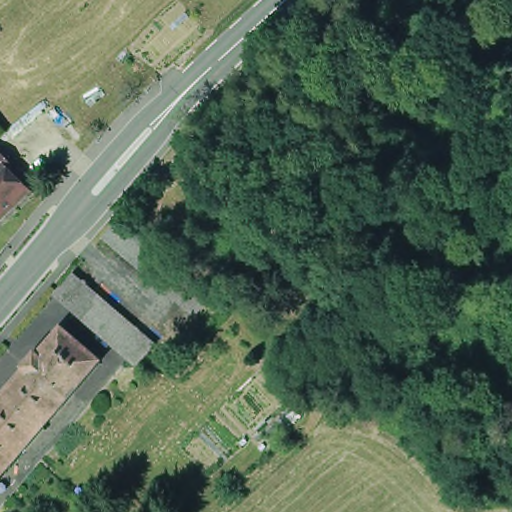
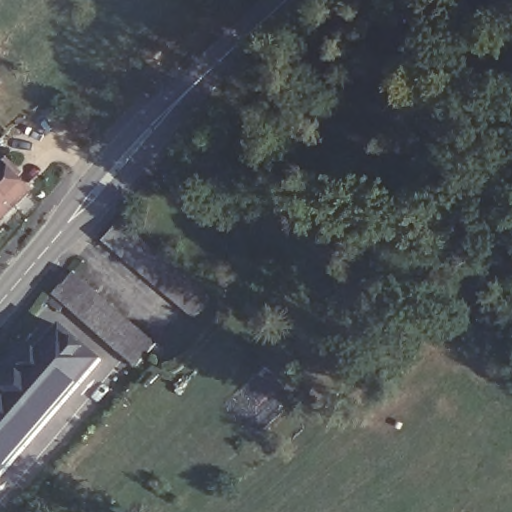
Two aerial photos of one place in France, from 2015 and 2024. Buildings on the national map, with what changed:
unchanged [(0,150),(10,159),(30,177),(25,184),(32,191),(0,223),(0,150)]
unchanged [(212,294),(196,312),(106,233),(120,215),(212,294)]
unchanged [(80,269),(156,335),(136,357),(60,292),(80,269)]
unchanged [(39,356),(63,330),(100,362),(0,476),(0,401),(27,370),(30,371),(41,358),(39,356)]

